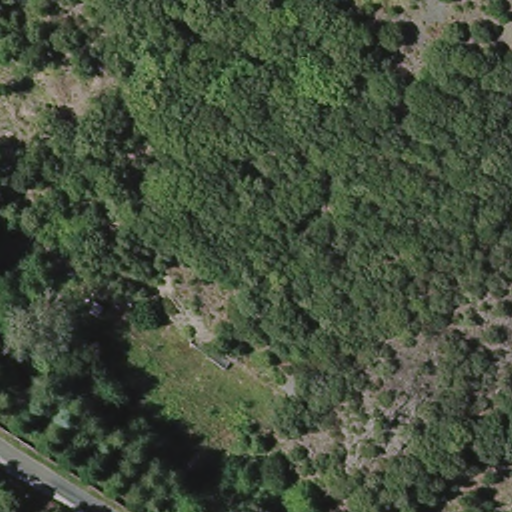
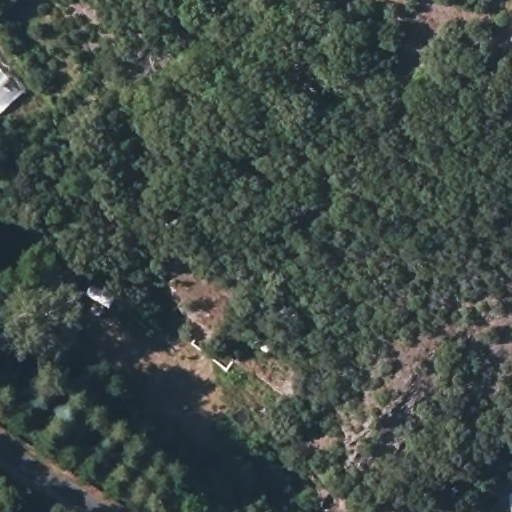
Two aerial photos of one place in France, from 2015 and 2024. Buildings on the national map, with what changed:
new [(26,92),(0,116),(0,64),(26,92)]
unchanged [(113,308),(103,321),(100,325),(89,312),(98,298),(113,308)]

